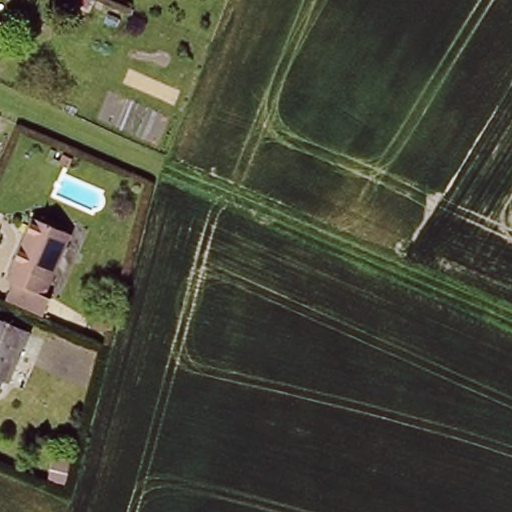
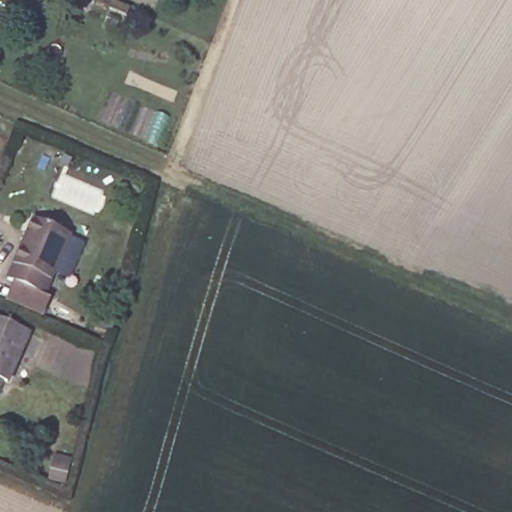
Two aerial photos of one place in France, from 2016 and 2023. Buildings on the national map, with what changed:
unchanged [(0,30),(0,25),(2,26),(0,30)]
unchanged [(12,275),(40,215),(75,230),(48,291),(56,295),(49,313),(41,310),(8,296),(17,277),(12,275)]
unchanged [(0,381),(0,322),(30,336),(8,384),(0,381)]

